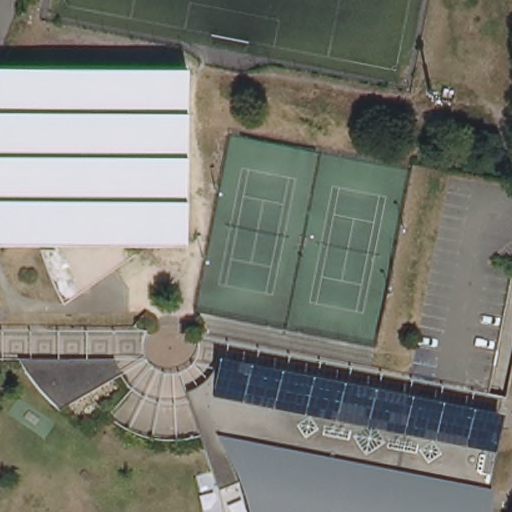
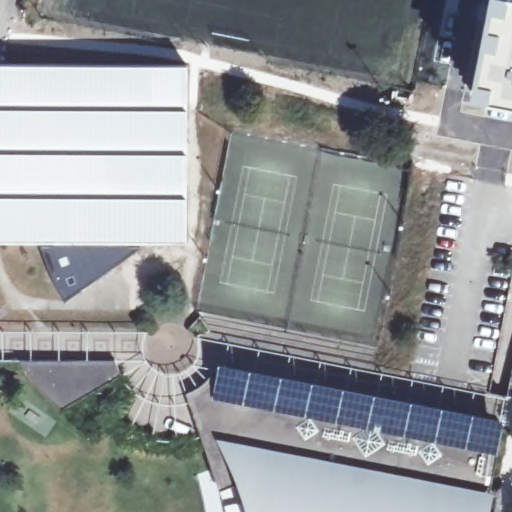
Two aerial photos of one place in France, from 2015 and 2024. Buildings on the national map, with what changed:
new [(512,0),(512,102),(471,94),(488,0),(512,0)]
unchanged [(186,246),(146,245),(129,245),(129,250),(144,251),(63,305),(40,254),(40,250),(54,250),(54,245),(0,245),(0,66),(188,67),(186,246)]
unchanged [(116,377),(55,411),(28,381),(16,363),(111,363),(116,377)]
unchanged [(366,402),(366,403),(381,407),(383,403),(405,411),(424,411),(424,414),(442,418),(443,416),(466,422),(498,428),(481,512),(249,512),(248,508),(241,485),(216,492),(189,414),(206,405),(203,401),(216,390),(219,392),(231,377),(366,402)]

